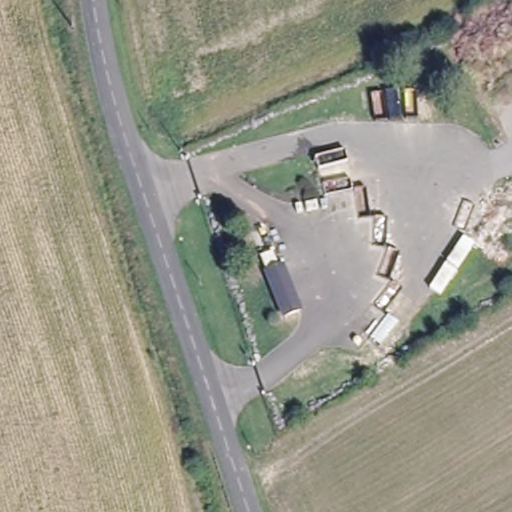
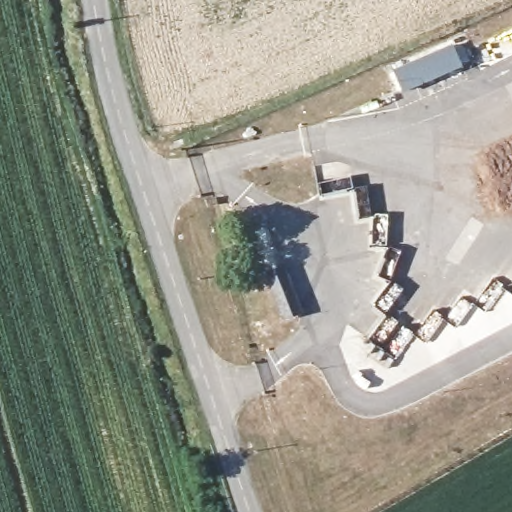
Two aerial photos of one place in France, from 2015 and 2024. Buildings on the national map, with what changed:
new [(404,91),(393,68),(452,42),(462,65),(404,91)]
unchanged [(292,259),(305,303),(285,309),(272,264),(292,259)]

